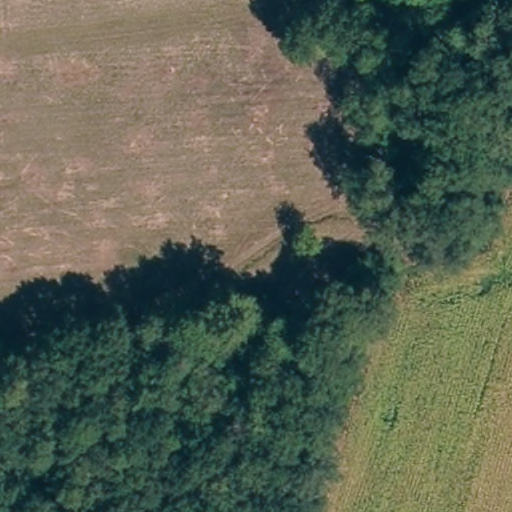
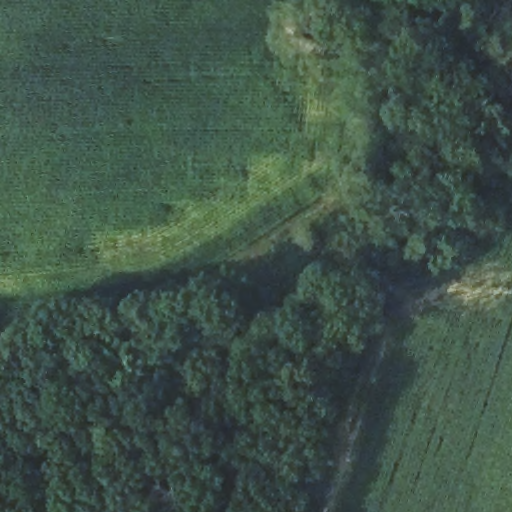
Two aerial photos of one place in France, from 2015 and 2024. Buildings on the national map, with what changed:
[]

